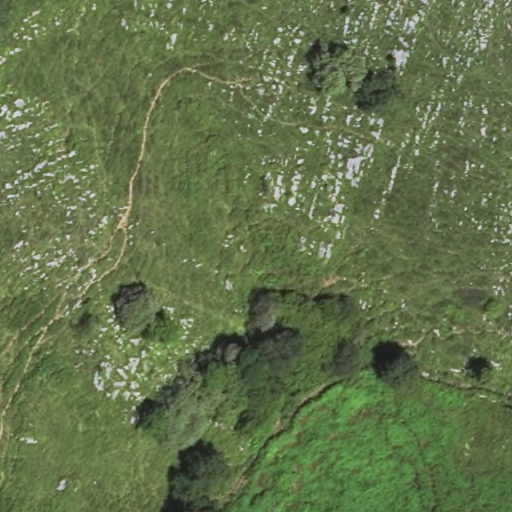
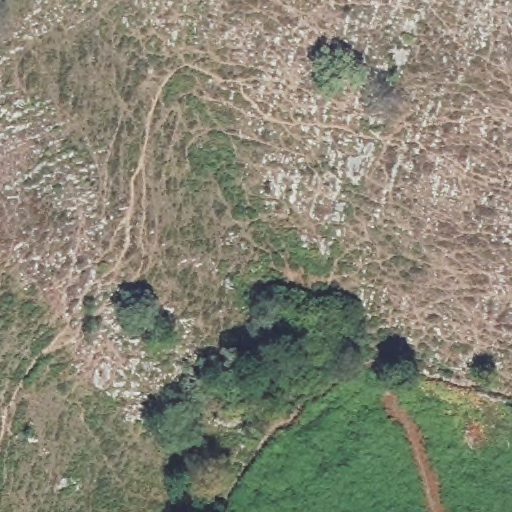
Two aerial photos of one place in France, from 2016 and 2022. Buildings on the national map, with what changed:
[]

